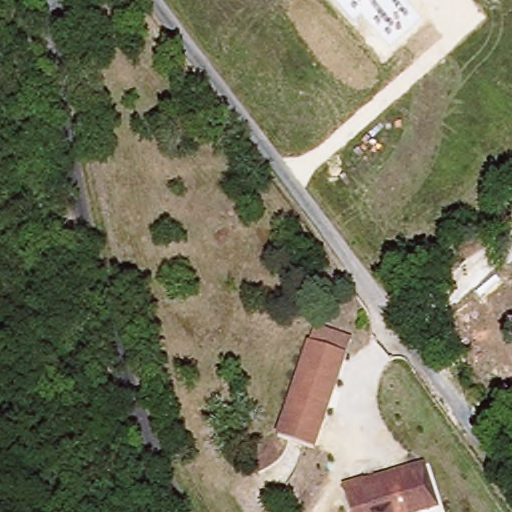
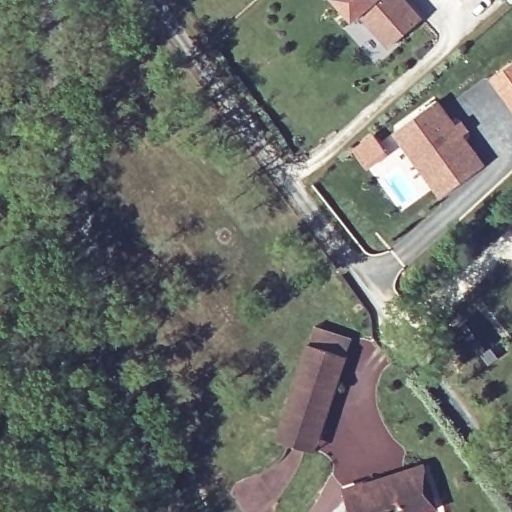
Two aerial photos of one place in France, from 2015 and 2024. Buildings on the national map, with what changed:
unchanged [(389,47),(361,15),(355,21),(338,0),(408,0),(423,17),(389,47)]
new [(489,80),(512,64),(512,109),(489,80)]
new [(484,164),(439,198),(392,132),(439,99),(484,164)]
unchanged [(286,432),(291,413),(310,334),(350,343),(330,423),(326,441),(286,432)]
unchanged [(364,494),(419,470),(424,480),(439,512),(346,512),(342,503),(364,494)]

